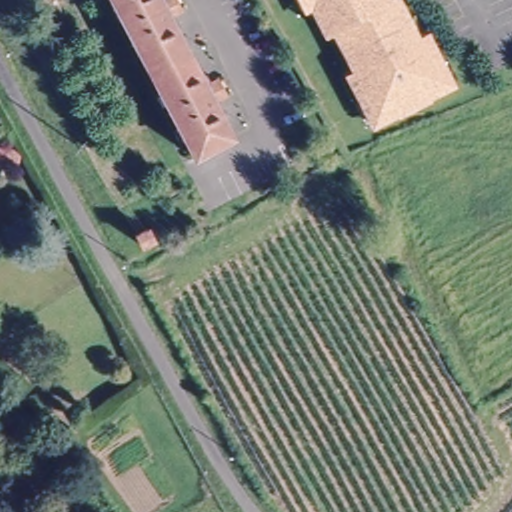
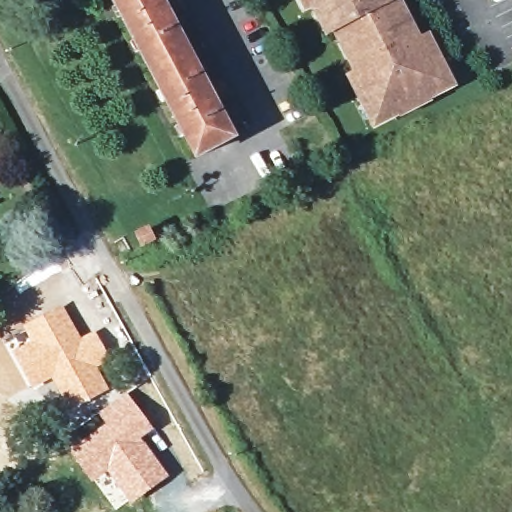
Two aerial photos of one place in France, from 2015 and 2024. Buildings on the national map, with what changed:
unchanged [(213,76),(220,90),(207,96),(227,132),(227,133),(189,153),(108,0),(173,0),(175,5),(164,11),(201,82),(213,76)]
unchanged [(307,12),(306,10),(299,14),(292,0),(379,0),(383,7),(391,3),(425,68),(433,64),(447,90),(369,130),(355,104),(362,100),(342,61),(329,35),(321,39),(307,12)]
new [(29,340),(22,326),(62,305),(81,337),(95,330),(111,359),(99,367),(110,388),(69,411),(50,380),(30,390),(10,351),(29,340)]
new [(103,423),(97,413),(127,391),(155,428),(142,437),(170,475),(131,505),(107,472),(90,482),(65,446),(103,423)]

